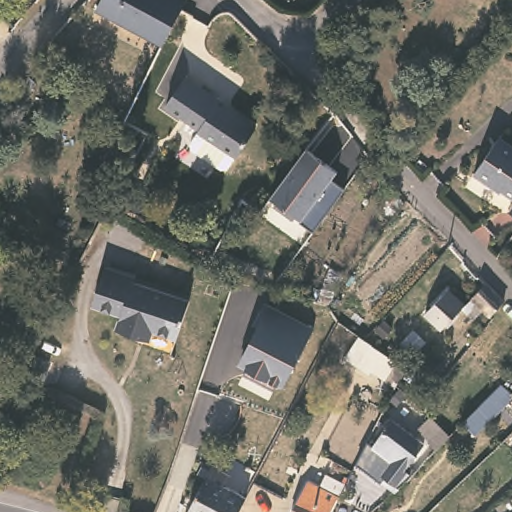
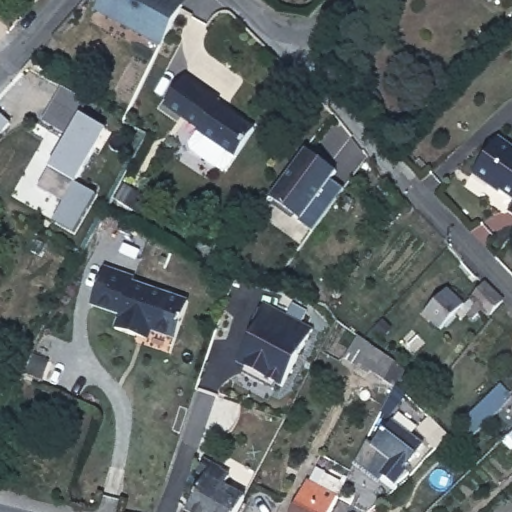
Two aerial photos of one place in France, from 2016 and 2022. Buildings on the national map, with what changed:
unchanged [(185,0),(184,3),(162,46),(95,10),(101,0),(185,0)]
unchanged [(510,0),(512,0),(512,2),(510,0)]
unchanged [(225,100),(223,102),(260,128),(232,168),(225,169),(197,150),(196,142),(205,129),(170,104),(190,76),(225,100)]
new [(75,233),(53,220),(64,202),(40,187),(51,166),(70,135),(45,120),(64,86),(90,102),(82,114),(107,129),(76,181),(99,193),(75,233)]
new [(0,135),(0,113),(10,122),(0,135)]
unchanged [(498,179),(495,182),(478,169),(503,134),(512,140),(512,189),(498,179)]
unchanged [(306,147),(337,171),(331,179),(344,189),(313,229),(295,214),(292,217),(274,205),(277,199),(271,195),(306,147)]
unchanged [(136,178),(131,176),(136,165),(142,168),(136,178)]
unchanged [(136,341),(115,333),(120,318),(92,309),(105,271),(136,281),(135,287),(190,305),(177,343),(154,335),(150,345),(136,341)]
unchanged [(505,300),(491,316),(483,308),(473,320),(467,314),(464,318),(458,312),(485,281),(505,300)]
unchanged [(464,301),(441,327),(426,313),(449,288),(464,301)]
unchanged [(313,328),(284,386),(276,383),(273,389),(245,374),(247,368),(237,363),(260,325),(254,323),(265,302),(313,328)]
unchanged [(396,371),(391,380),(377,370),(375,374),(350,358),(363,337),(401,363),(412,369),(406,377),(396,371)]
unchanged [(45,361),(62,369),(57,382),(40,374),(45,361)]
unchanged [(503,397),(495,390),(505,376),(512,381),(512,386),(503,397)]
unchanged [(470,415),(483,402),(492,393),(503,402),(503,404),(495,413),(481,426),(470,415)]
unchanged [(445,435),(431,449),(423,438),(413,429),(427,415),(445,435)]
unchanged [(420,442),(401,467),(405,470),(393,485),(380,473),(388,463),(368,446),(381,429),(382,431),(391,419),(420,442)]
unchanged [(233,512),(186,512),(184,510),(201,475),(207,463),(219,469),(217,472),(225,476),(220,485),(241,496),(233,512)]
unchanged [(344,482),(329,512),(291,512),(308,478),(321,485),(327,473),(344,482)]

